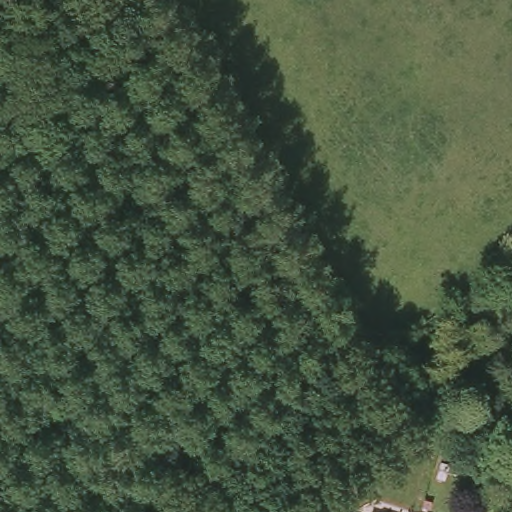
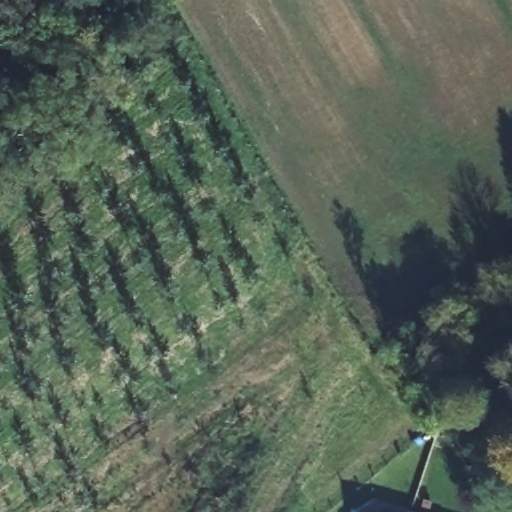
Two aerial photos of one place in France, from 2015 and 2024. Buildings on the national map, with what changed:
[]

